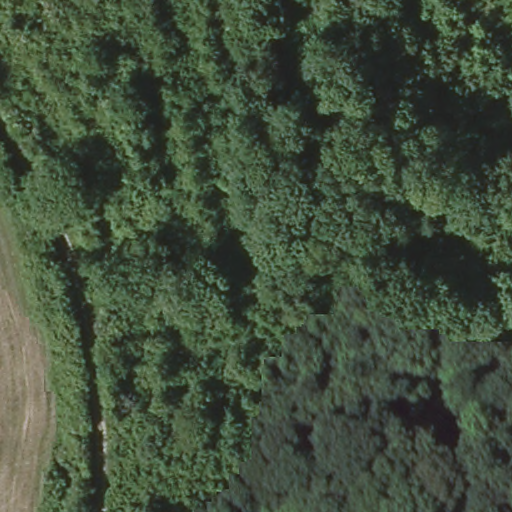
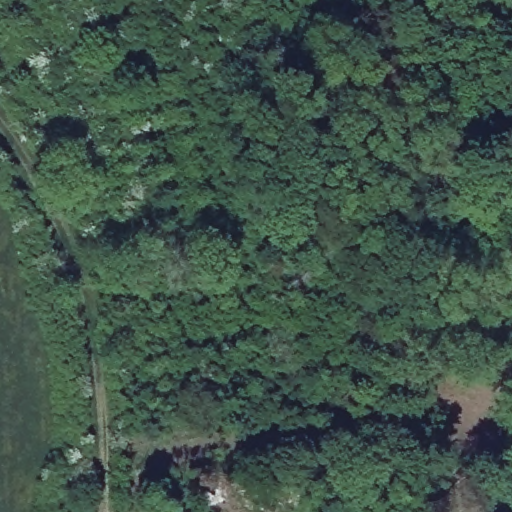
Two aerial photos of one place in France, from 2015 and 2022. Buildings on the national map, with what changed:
unchanged [(330,231),(319,261),(308,257),(319,227),(330,231)]

